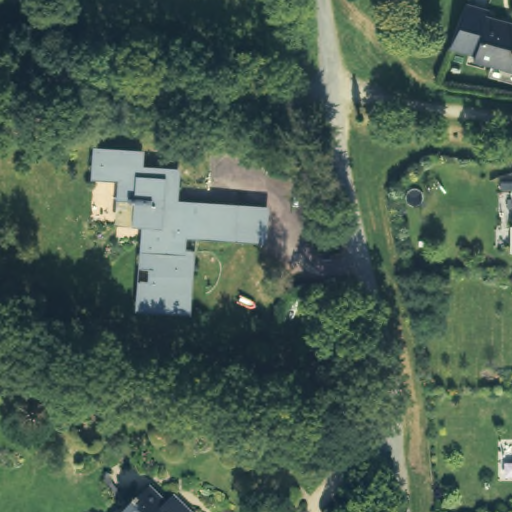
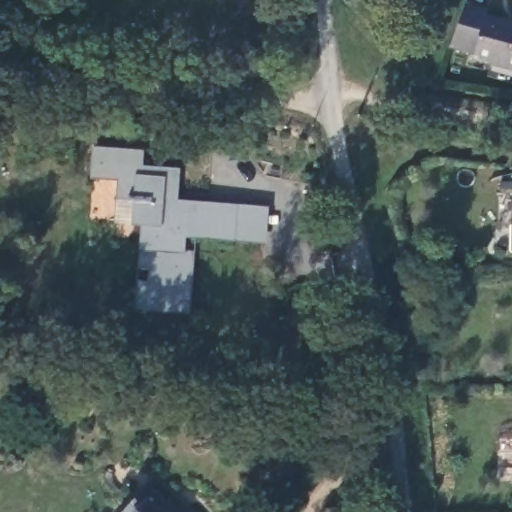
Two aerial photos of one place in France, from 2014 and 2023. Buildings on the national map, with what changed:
unchanged [(486,16),(512,23),(512,65),(446,48),(463,4),(487,10),(486,16)]
unchanged [(241,210),(268,212),(267,244),(240,242),(189,238),(188,252),(195,258),(191,315),(137,310),(139,279),(148,272),(148,268),(138,263),(140,219),(133,218),(134,199),(120,198),(118,195),(118,177),(92,175),(94,148),(143,152),(142,169),(178,171),(177,205),(241,210)]
unchanged [(510,222),(512,222),(512,248),(509,248),(510,222)]
unchanged [(162,505),(167,499),(180,512),(185,507),(189,512),(121,512),(146,487),(162,505)]

